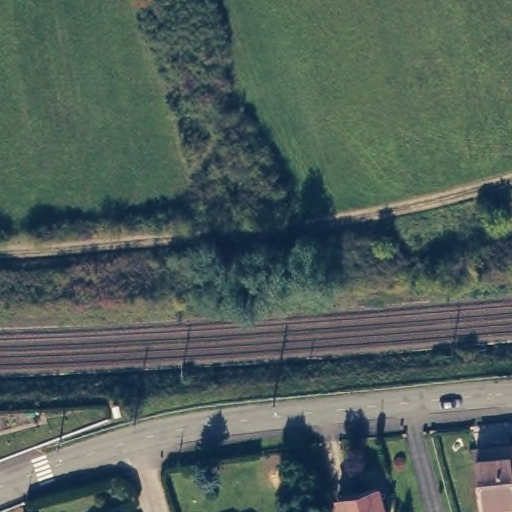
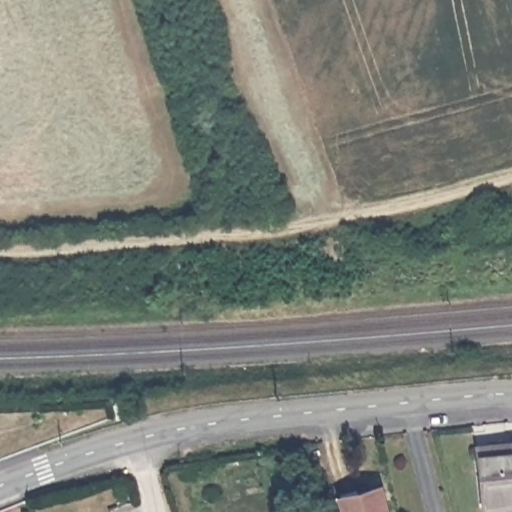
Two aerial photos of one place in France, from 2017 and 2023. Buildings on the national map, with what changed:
unchanged [(506,447),(512,446),(512,498),(512,506),(481,511),(473,458),(507,454),(506,447)]
unchanged [(372,487),(379,512),(337,512),(333,499),(372,487)]

